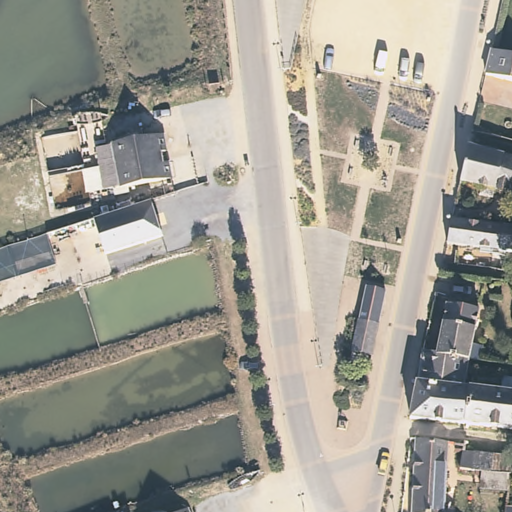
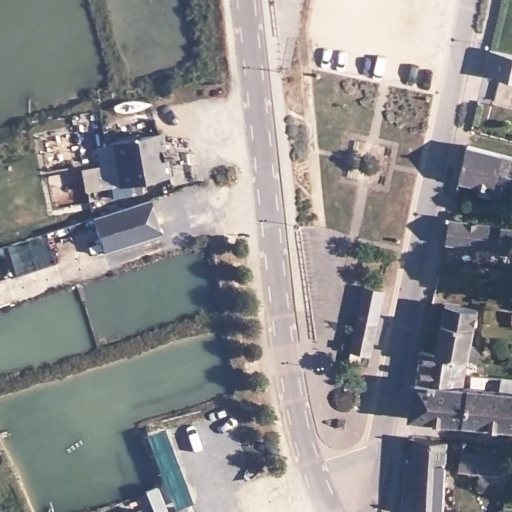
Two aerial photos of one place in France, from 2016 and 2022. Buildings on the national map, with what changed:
unchanged [(512,81),(484,75),(490,50),(512,56),(512,81)]
unchanged [(162,148),(148,153),(151,162),(164,160),(168,178),(124,188),(115,143),(158,133),(162,148)]
unchanged [(512,192),(502,190),(500,199),(487,195),(489,187),(468,182),(475,147),(512,156),(512,192)]
unchanged [(163,236),(110,254),(96,215),(150,197),(163,236)]
unchanged [(512,253),(496,251),(496,255),(490,255),(491,249),(444,244),(447,228),(449,220),(512,228),(512,253)]
unchanged [(54,264),(0,282),(0,249),(45,235),(54,264)]
unchanged [(365,286),(384,288),(374,320),(369,353),(350,350),(354,317),(357,318),(365,286)]
unchanged [(434,356),(434,354),(444,303),(475,309),(469,344),(479,345),(476,360),(466,359),(434,356)]
unchanged [(461,388),(416,383),(420,353),(434,354),(434,356),(466,359),(461,388)]
unchanged [(465,389),(498,392),(500,378),(512,379),(512,431),(462,426),(465,389)]
unchanged [(462,426),(409,420),(414,383),(416,383),(461,388),(465,389),(462,426)]
unchanged [(414,440),(446,443),(442,512),(411,512),(414,440)]
unchanged [(476,488),(478,472),(457,469),(459,450),(510,456),(508,475),(505,475),(503,492),(476,488)]
unchanged [(502,505),(512,506),(512,512),(502,512),(502,505)]

